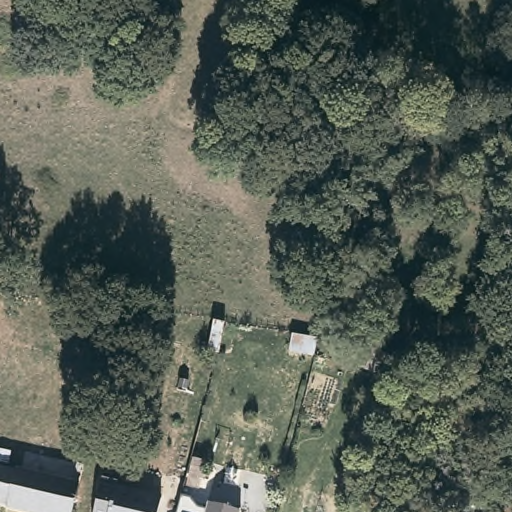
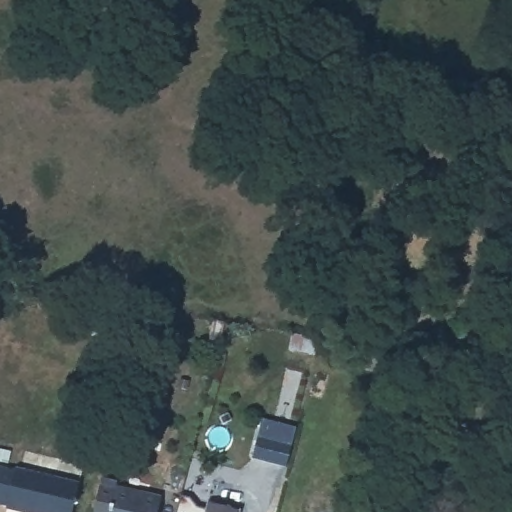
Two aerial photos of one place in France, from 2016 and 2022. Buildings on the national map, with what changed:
new [(263,418),(297,426),(285,466),(251,458),(263,418)]
unchanged [(72,512),(23,512),(6,508),(8,504),(0,502),(0,467),(16,472),(18,468),(79,486),(72,512)]
unchanged [(114,490),(161,500),(158,512),(109,512),(114,490)]
unchanged [(209,505),(237,512),(207,512),(209,505)]

